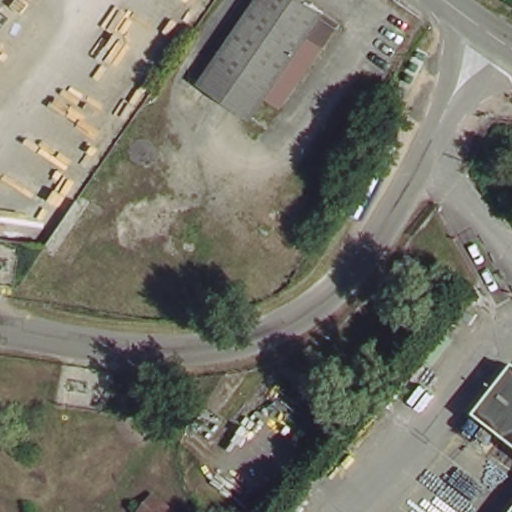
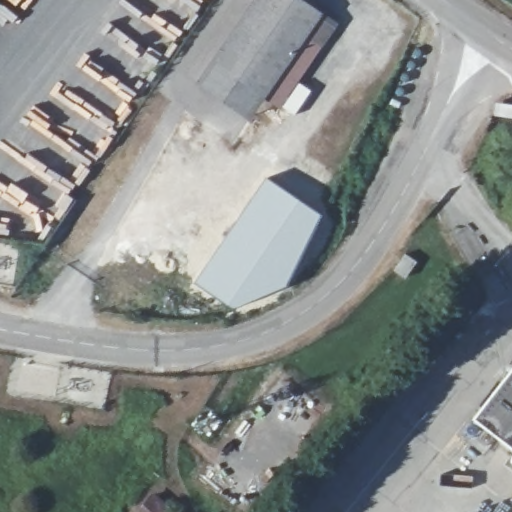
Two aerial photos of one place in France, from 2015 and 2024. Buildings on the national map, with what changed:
unchanged [(221,56),(255,0),(311,0),(326,10),(271,91),(221,56)]
unchanged [(326,10),(343,21),(287,102),(271,91),(326,10)]
unchanged [(256,115),(203,79),(221,56),(271,91),(256,115)]
new [(266,176),(324,213),(287,285),(264,297),(234,309),(193,281),(266,176)]
unchanged [(377,280),(366,296),(354,287),(365,272),(377,280)]
unchanged [(510,365),(512,367),(512,450),(470,419),(510,365)]

